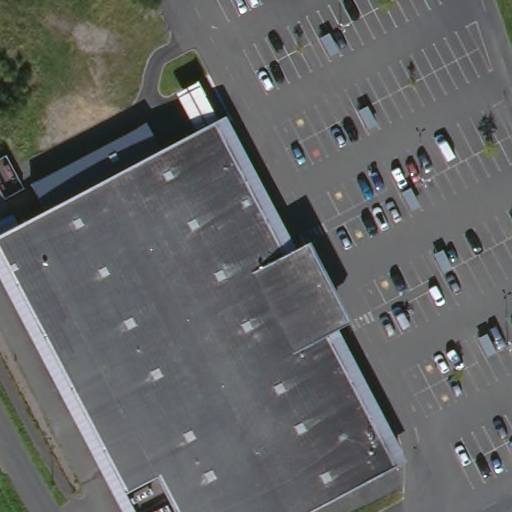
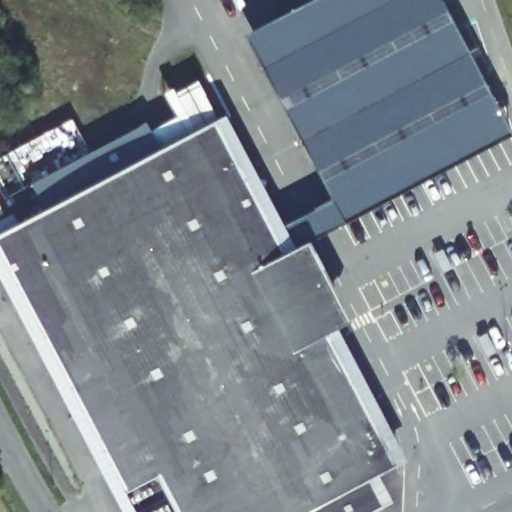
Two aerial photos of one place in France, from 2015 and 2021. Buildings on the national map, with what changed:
new [(245,35),(312,0),(440,0),(512,136),(345,225),(307,243),(297,247),(286,225),(332,202),(245,35)]
unchanged [(33,180),(144,121),(159,147),(227,115),(297,247),(307,243),(347,322),(335,327),(407,461),(312,512),(118,512),(0,288),(0,233),(45,210),(33,180)]
new [(377,512),(312,512),(377,477),(392,504),(377,512)]

